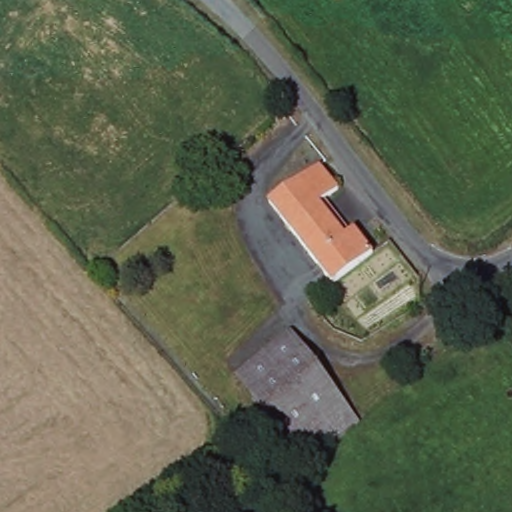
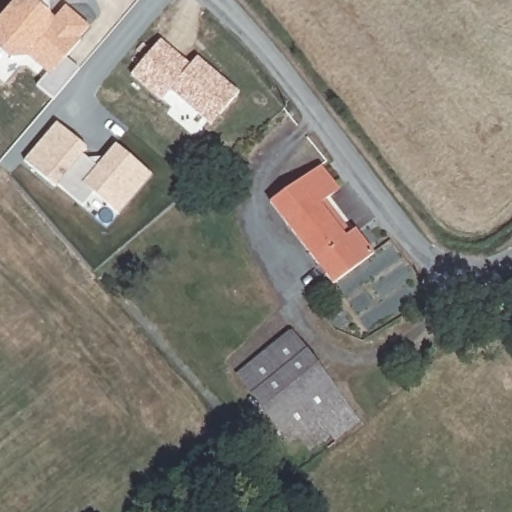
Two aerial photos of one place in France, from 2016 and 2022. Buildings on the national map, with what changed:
new [(49,13),(50,27),(26,55),(12,57),(0,48),(0,17),(14,0),(48,0),(49,13)]
new [(56,18),(65,6),(88,26),(50,74),(26,55),(50,27),(49,13),(56,18)]
new [(118,214),(92,191),(80,205),(56,184),(54,187),(23,160),(56,123),(86,147),(81,153),(97,165),(113,144),(151,173),(118,214)]
unchanged [(337,189),(320,202),(344,235),(357,227),(375,252),(334,283),(270,200),(321,164),(337,189)]
unchanged [(326,435),(309,449),(296,434),(285,441),(235,371),(290,331),(359,423),(333,444),(326,435)]

